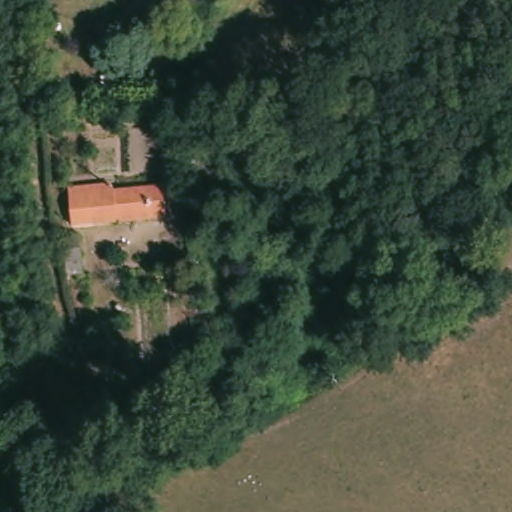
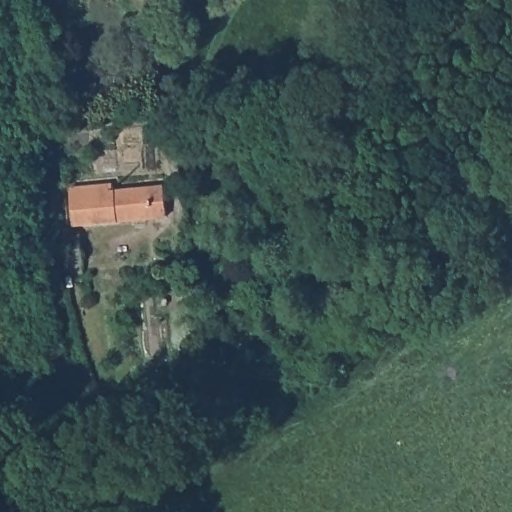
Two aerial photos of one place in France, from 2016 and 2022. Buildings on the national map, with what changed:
unchanged [(111,183),(113,192),(163,184),(167,215),(74,230),(68,190),(111,183)]
unchanged [(79,236),(85,277),(71,280),(65,239),(79,236)]

